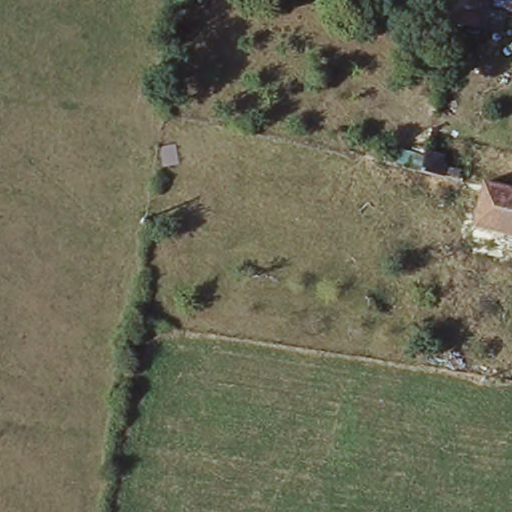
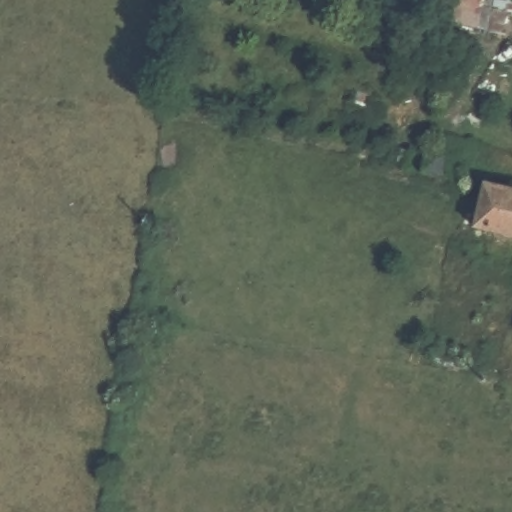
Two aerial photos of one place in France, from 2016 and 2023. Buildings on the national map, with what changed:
unchanged [(341,0),(374,0),(373,6),(341,0)]
unchanged [(445,16),(448,0),(486,0),(481,25),(445,16)]
unchanged [(453,159),(449,176),(424,170),(427,152),(453,159)]
unchanged [(512,257),(471,246),(486,181),(512,186),(512,257)]

